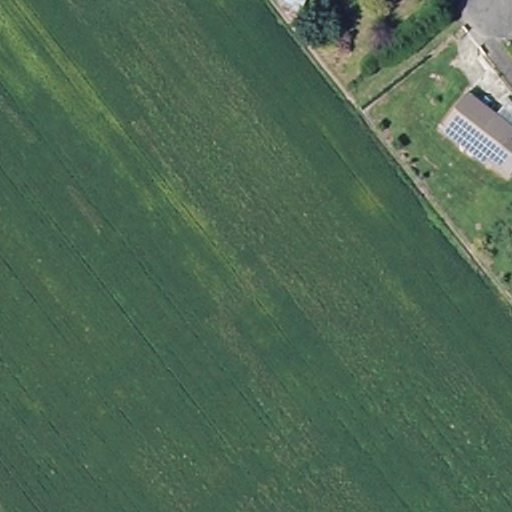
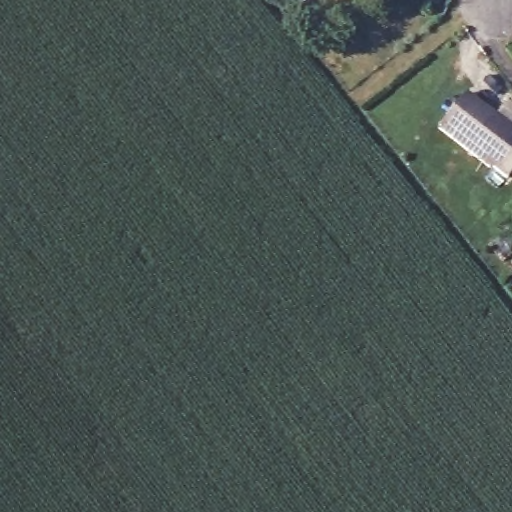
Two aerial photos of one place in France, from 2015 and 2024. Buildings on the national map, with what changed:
unchanged [(444,126),(467,92),(512,128),(512,172),(508,178),(444,126)]

